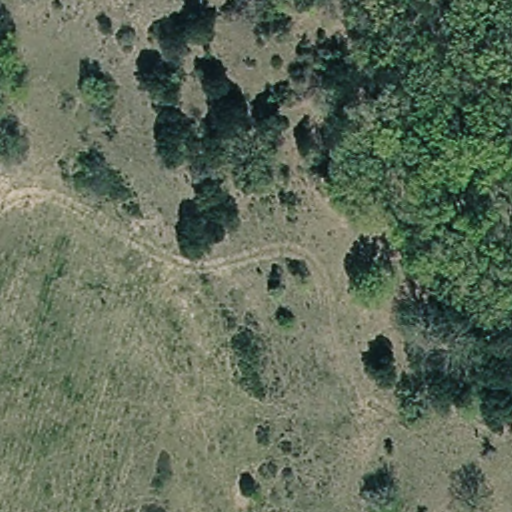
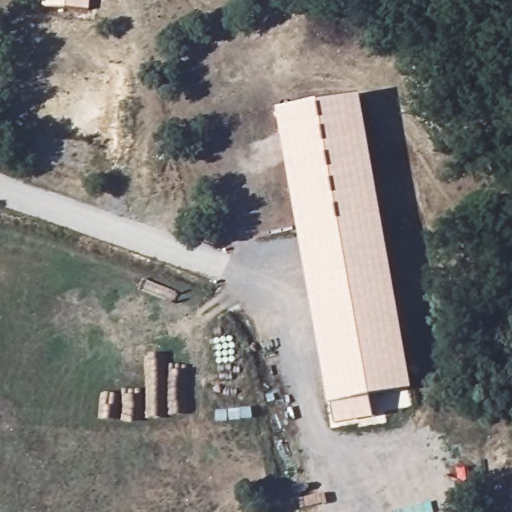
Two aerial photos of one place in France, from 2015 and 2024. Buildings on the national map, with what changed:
new [(89,9),(42,7),(43,0),(90,0),(89,9)]
new [(412,389),(371,396),(374,417),(336,425),(331,404),(328,405),(276,109),(361,95),(412,389)]

